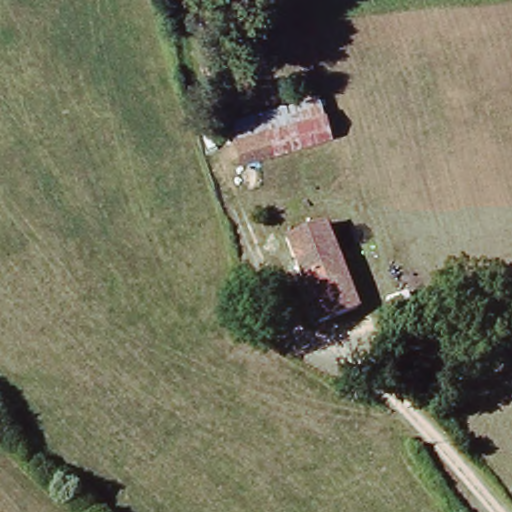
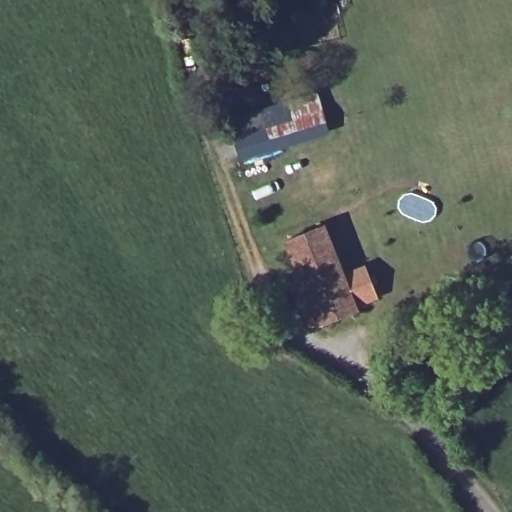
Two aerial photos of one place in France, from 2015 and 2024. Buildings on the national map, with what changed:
unchanged [(326,117),(332,137),(246,160),(241,139),(326,117)]
unchanged [(290,239),(330,227),(357,312),(320,324),(290,239)]

